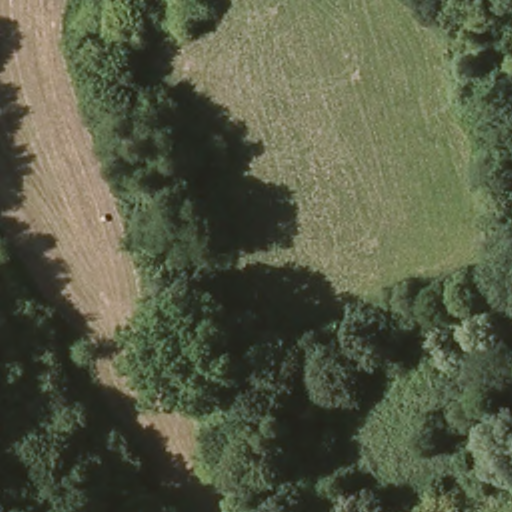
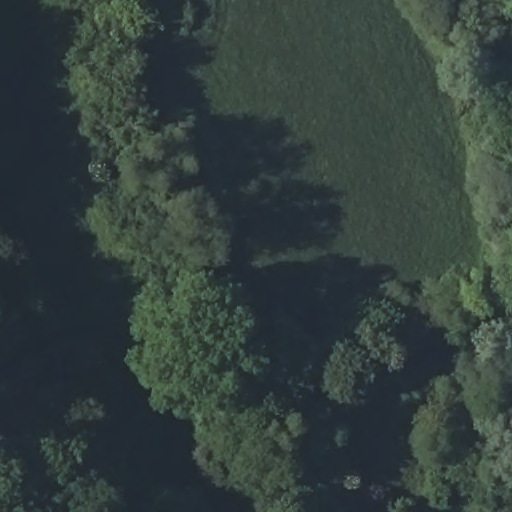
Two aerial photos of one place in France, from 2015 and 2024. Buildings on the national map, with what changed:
[]

